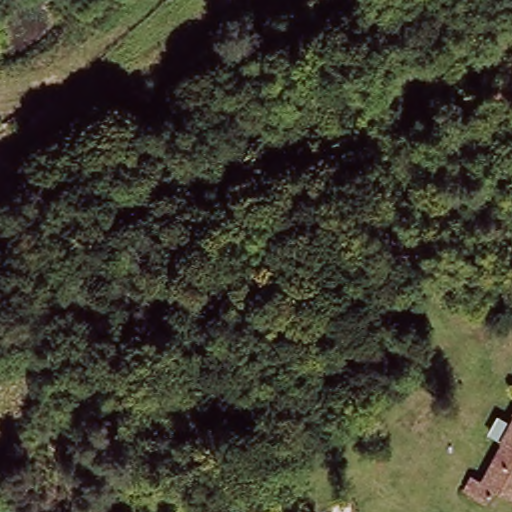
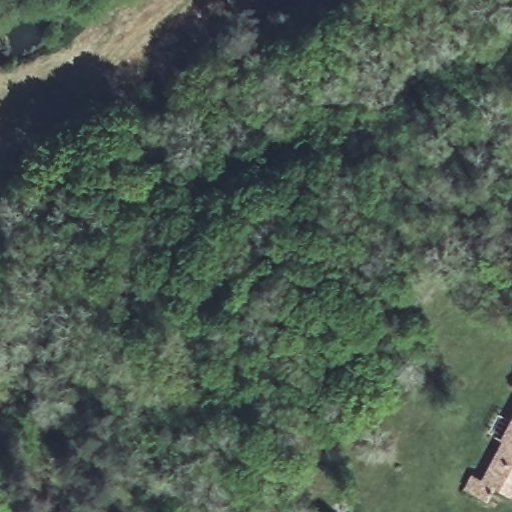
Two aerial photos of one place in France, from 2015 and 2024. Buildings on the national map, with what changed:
unchanged [(511,441),(504,437),(512,425),(512,494),(498,484),(488,498),(476,492),(467,486),(478,469),(488,475),(511,441)]

